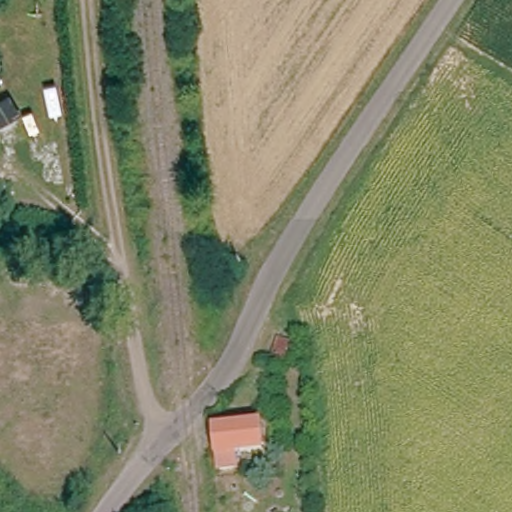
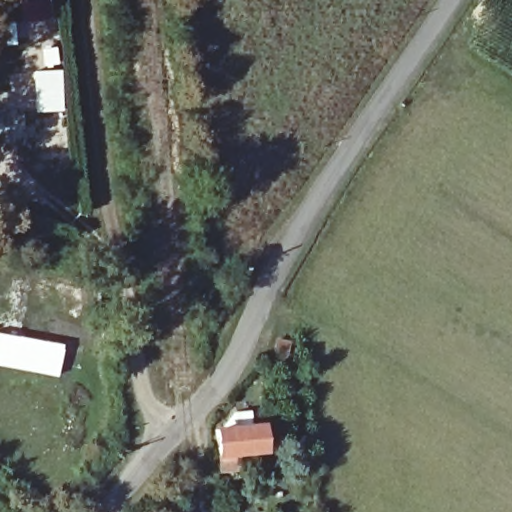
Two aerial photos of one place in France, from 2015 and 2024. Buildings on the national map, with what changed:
new [(63,350),(57,378),(0,367),(0,336),(63,350)]
unchanged [(262,449),(237,452),(237,471),(217,473),(214,430),(260,425),(262,449)]

